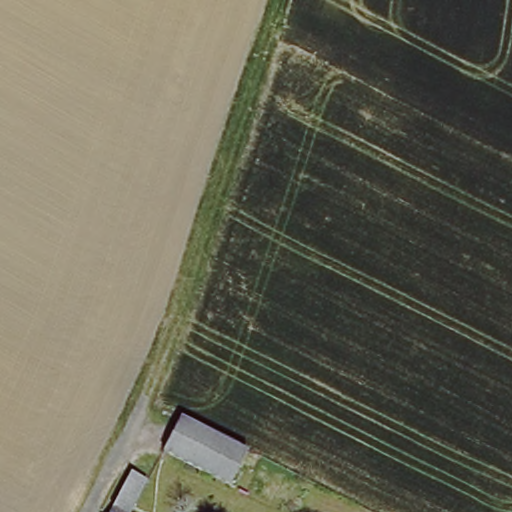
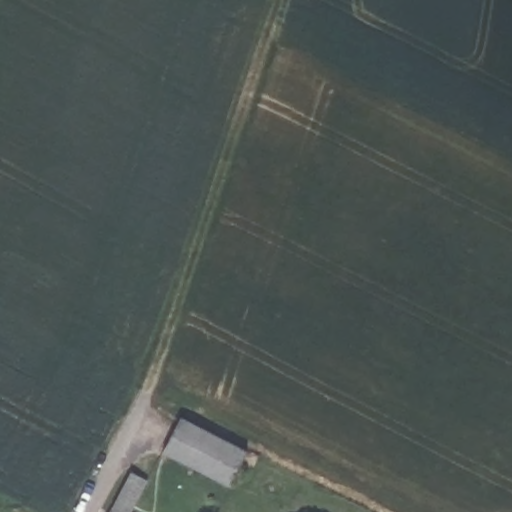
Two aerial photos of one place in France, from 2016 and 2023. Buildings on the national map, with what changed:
unchanged [(178,420),(246,454),(229,487),(163,455),(178,420)]
unchanged [(148,480),(131,512),(112,512),(132,473),(148,480)]

